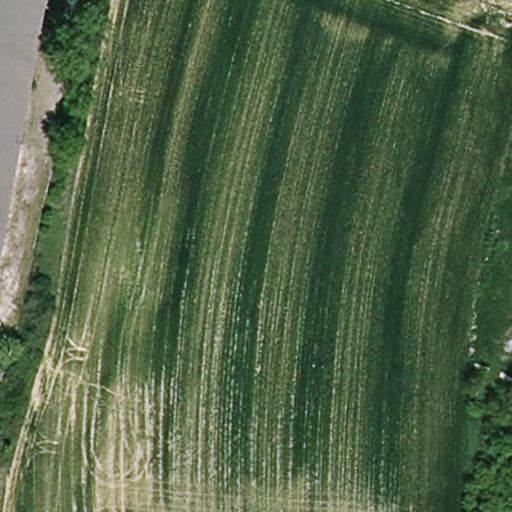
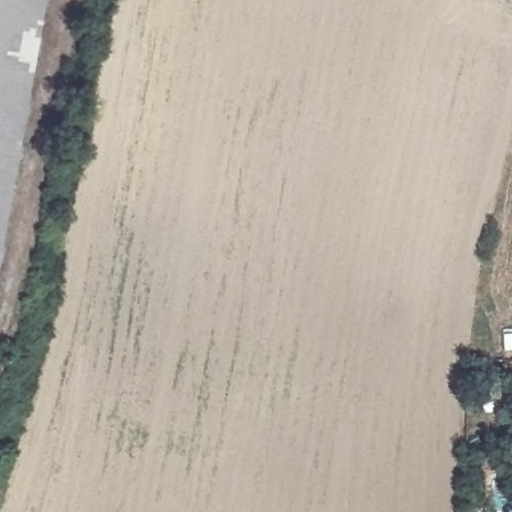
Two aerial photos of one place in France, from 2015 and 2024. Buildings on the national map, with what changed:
unchanged [(0,0),(32,0),(0,185),(0,0)]

